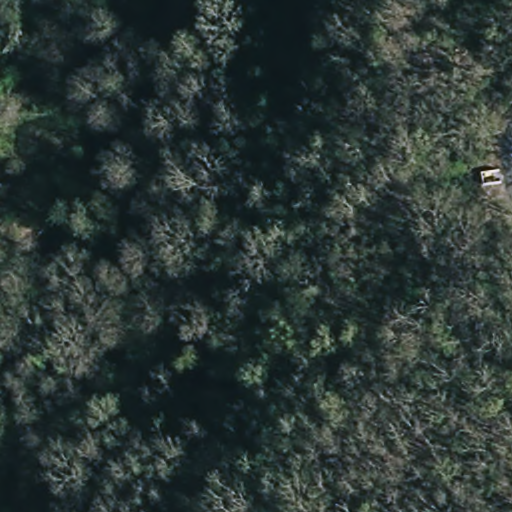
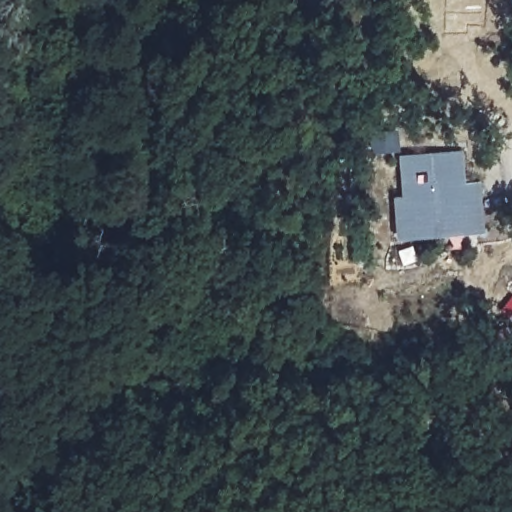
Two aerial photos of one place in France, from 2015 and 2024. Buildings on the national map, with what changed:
new [(372,150),(371,135),(396,134),(397,149),(372,150)]
new [(403,197),(401,156),(456,154),(458,187),(473,186),(474,205),(459,205),(460,225),(440,226),(440,220),(395,222),(394,199),(403,197)]
new [(440,220),(440,226),(460,225),(459,205),(474,205),(475,230),(396,234),(395,222),(440,220)]

